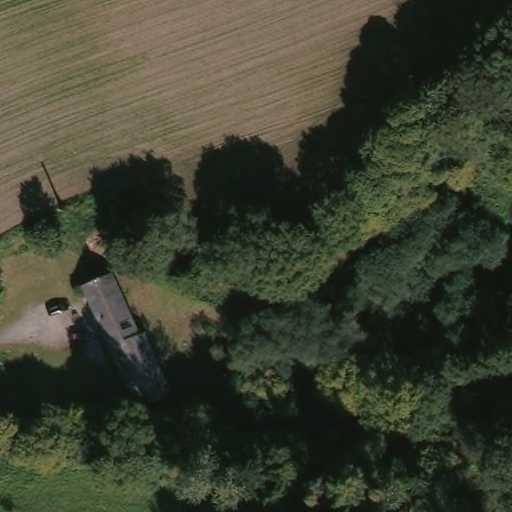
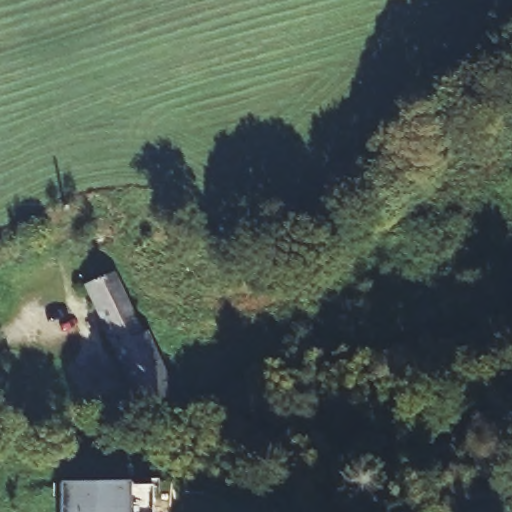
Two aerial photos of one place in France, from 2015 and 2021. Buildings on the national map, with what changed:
unchanged [(84,288),(114,273),(139,333),(147,330),(175,391),(137,408),(86,290),(84,288)]
new [(129,484),(129,512),(61,512),(61,485),(129,484)]

